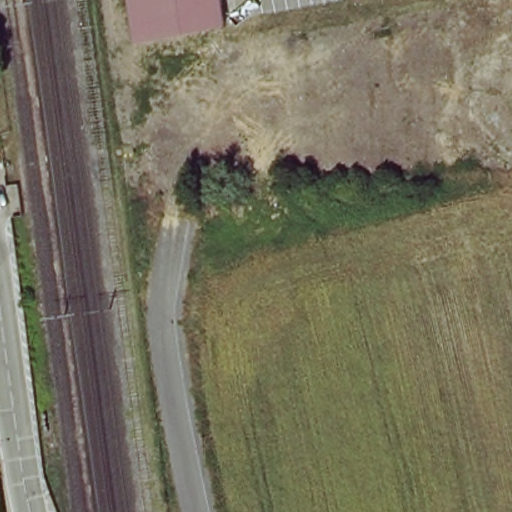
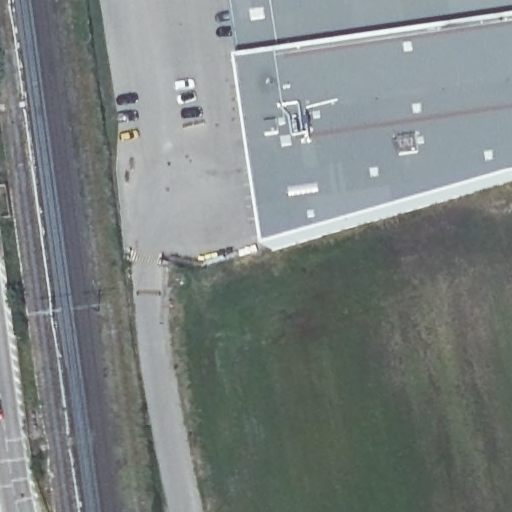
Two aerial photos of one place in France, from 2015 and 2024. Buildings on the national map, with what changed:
demolished [(117,0),(209,0),(214,31),(124,49),(117,0)]
new [(246,63),(238,0),(512,0),(512,181),(275,250),(246,63)]
unchanged [(5,165),(5,166),(0,169),(0,157),(5,165)]

